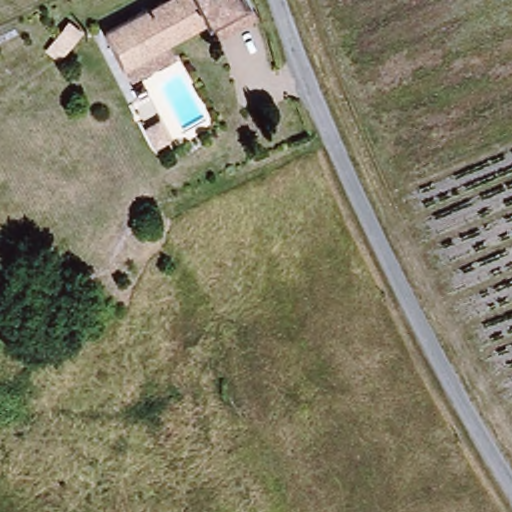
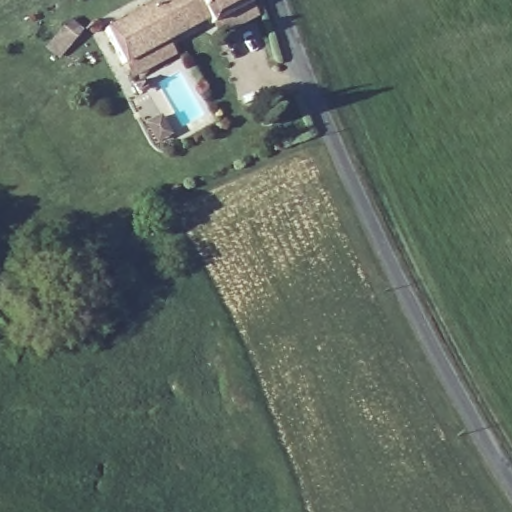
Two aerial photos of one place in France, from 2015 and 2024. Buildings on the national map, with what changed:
unchanged [(129,78),(121,63),(106,29),(159,0),(247,0),(250,4),(257,19),(217,41),(210,26),(207,20),(164,42),(170,57),(129,78)]

